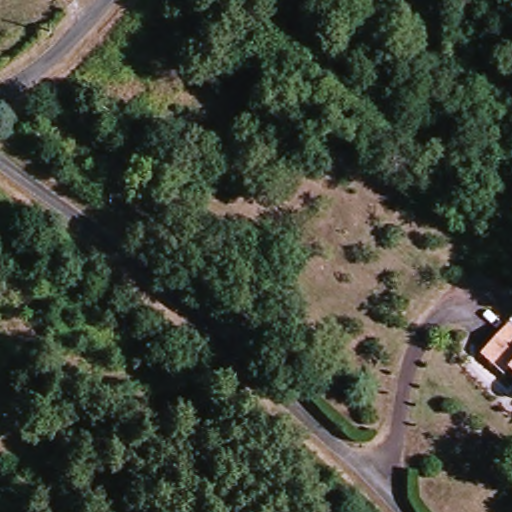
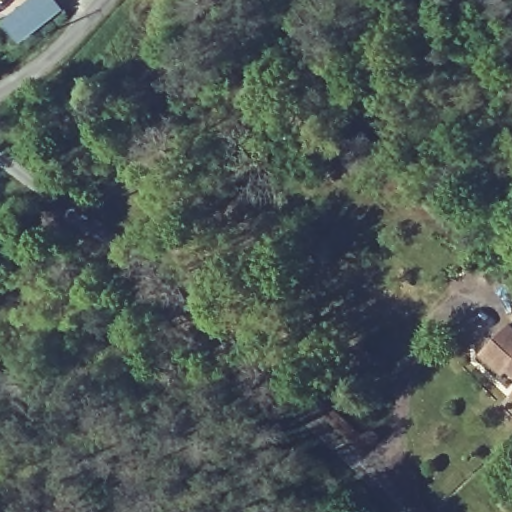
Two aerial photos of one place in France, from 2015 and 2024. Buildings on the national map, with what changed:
new [(17,40),(2,20),(28,0),(52,0),(58,8),(17,40)]
unchanged [(503,366),(494,376),(471,354),(501,323),(512,334),(512,374),(503,366)]

